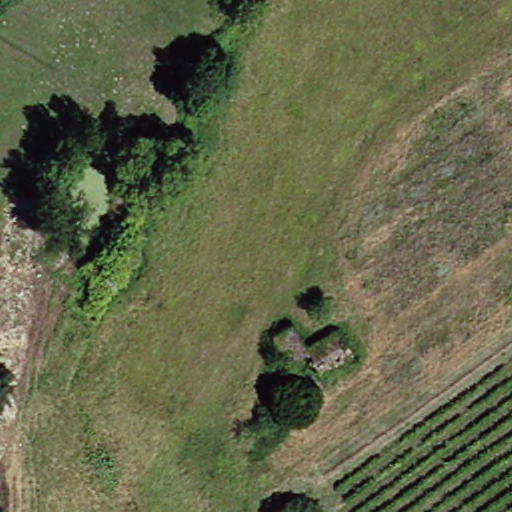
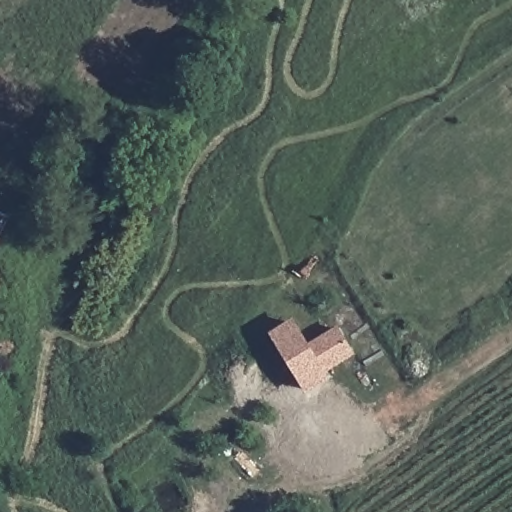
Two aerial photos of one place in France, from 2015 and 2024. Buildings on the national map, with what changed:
new [(293,320),(308,344),(338,326),(357,355),(327,374),(331,380),(307,395),(269,335),(293,320)]

